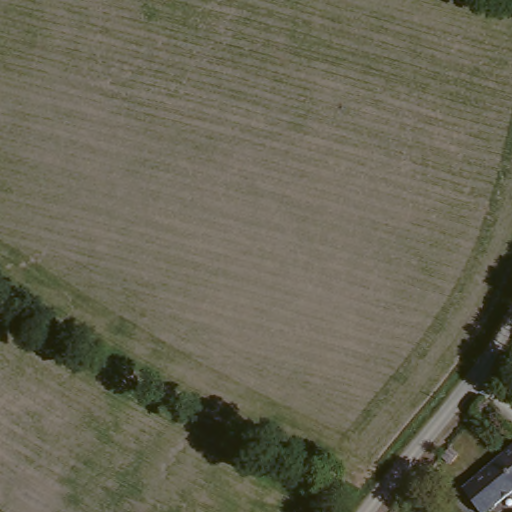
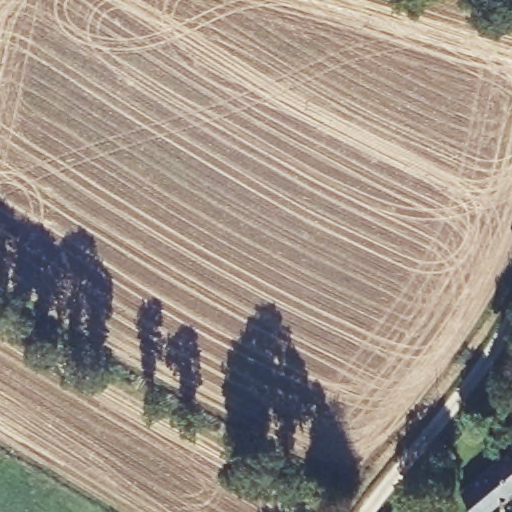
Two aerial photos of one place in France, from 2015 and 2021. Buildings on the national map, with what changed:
unchanged [(512,499),(495,512),(469,512),(461,499),(497,466),(512,453),(512,499)]

